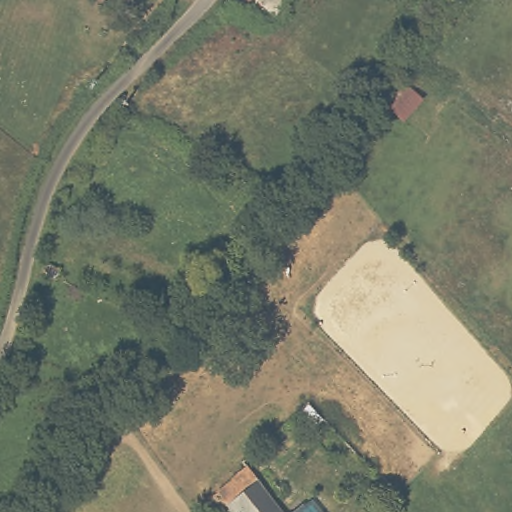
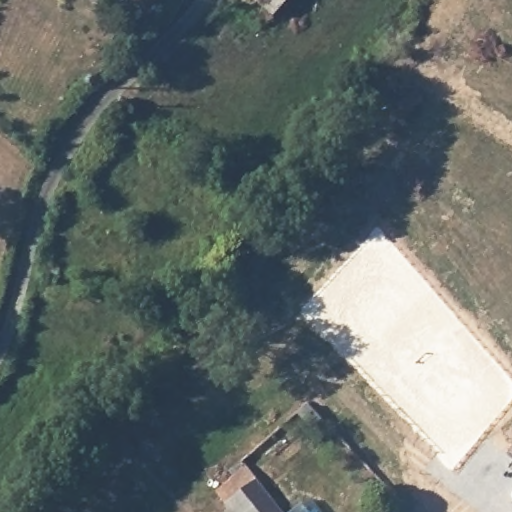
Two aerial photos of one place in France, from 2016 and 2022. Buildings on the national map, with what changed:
unchanged [(262,31),(236,7),(242,0),(290,0),(262,31)]
unchanged [(292,411),(302,402),(317,416),(306,426),(292,411)]
unchanged [(272,512),(221,512),(202,489),(231,460),(272,512)]
unchanged [(290,501),(298,495),(309,509),(305,512),(273,512),(289,499),(290,501)]

